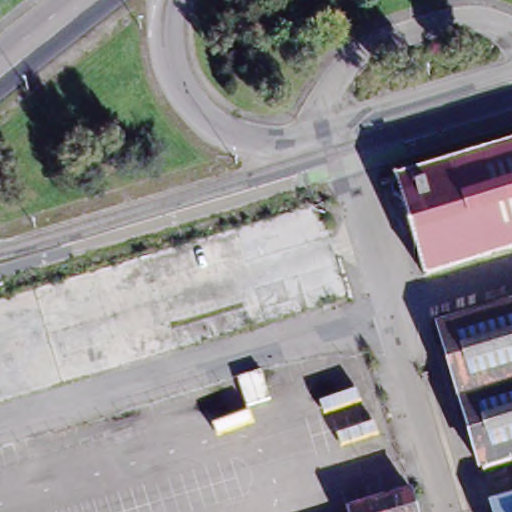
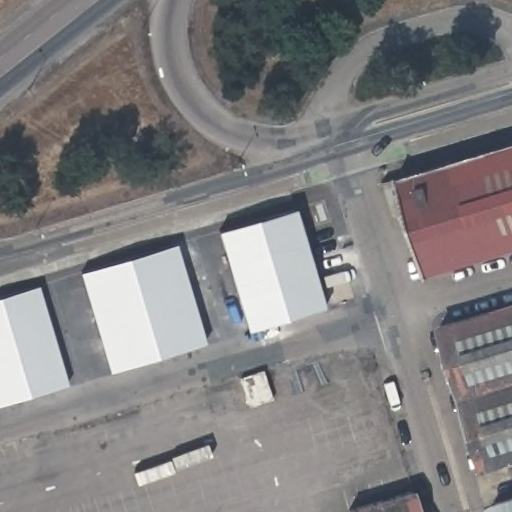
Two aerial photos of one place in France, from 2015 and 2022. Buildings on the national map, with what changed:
unchanged [(403,199),(391,198),(387,183),(512,145),(512,253),(428,279),(403,199)]
new [(217,232),(295,209),(324,309),(246,331),(217,232)]
new [(80,274),(175,243),(205,345),(109,373),(80,274)]
new [(38,287),(68,387),(0,406),(0,298),(38,287)]
unchanged [(512,459),(481,468),(439,325),(512,303),(512,459)]
unchanged [(351,511),(416,491),(423,512),(351,512),(351,511)]
unchanged [(512,512),(500,512),(497,504),(512,499),(512,512)]

